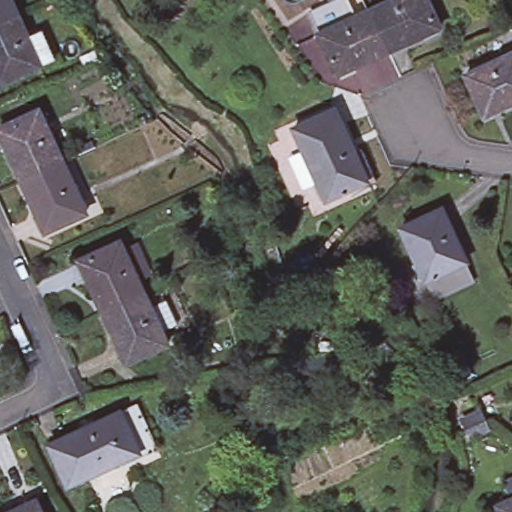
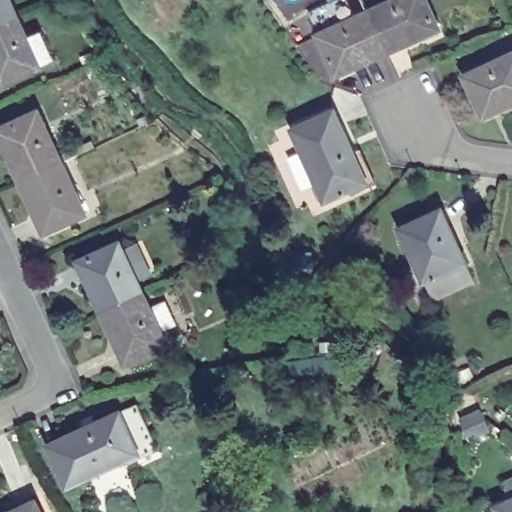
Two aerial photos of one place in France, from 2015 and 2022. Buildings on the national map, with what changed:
unchanged [(0,18),(0,0),(13,0),(17,10),(0,18)]
unchanged [(374,0),(392,0),(393,2),(398,0),(432,0),(445,29),(394,52),(375,11),(377,10),(373,1),(374,0)]
unchanged [(55,55),(40,62),(0,80),(0,18),(17,10),(27,32),(41,27),(55,55)]
unchanged [(342,76),(323,35),(329,32),(375,11),(394,52),(359,68),(345,75),(342,76)]
unchanged [(485,117),(465,76),(512,54),(512,104),(499,110),(487,116),(485,117)]
unchanged [(314,142),(304,119),(345,101),(359,131),(364,143),(370,141),(385,172),(379,176),(377,172),(355,182),(357,184),(354,185),(352,183),(336,191),(328,173),(314,180),(299,148),(314,142)]
unchanged [(0,129),(39,111),(62,162),(22,181),(0,134),(0,129)]
unchanged [(86,214),(45,232),(22,181),(62,162),(86,214)]
unchanged [(435,283),(425,266),(400,214),(442,195),(450,211),(459,232),(466,247),(475,266),(435,283)]
unchanged [(120,242),(125,251),(137,245),(150,274),(137,280),(144,293),(103,312),(80,261),(120,242)]
unchanged [(297,254),(312,254),(312,270),(297,269),(297,254)]
unchanged [(168,345),(127,363),(103,312),(144,293),(168,345)]
unchanged [(316,357),(350,352),(351,360),(347,360),(348,367),(318,371),(316,357)]
unchanged [(455,371),(468,365),(474,376),(461,383),(455,371)]
unchanged [(65,437),(90,426),(120,412),(137,405),(155,446),(140,453),(68,486),(50,445),(65,437)]
unchanged [(506,496),(497,477),(512,470),(512,512),(497,512),(492,502),(506,496)]
unchanged [(0,510),(19,502),(42,491),(51,512),(0,512),(0,510)]

